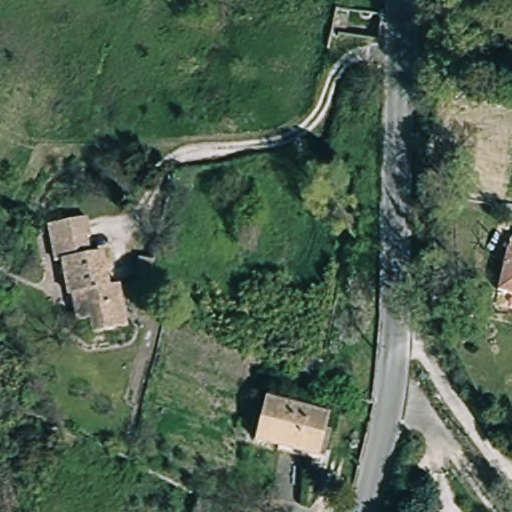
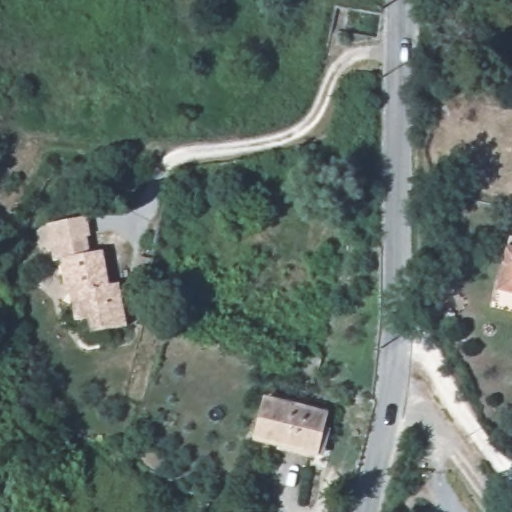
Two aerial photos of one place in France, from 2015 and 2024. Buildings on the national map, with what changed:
unchanged [(86,216),(92,252),(63,253),(63,269),(52,269),(47,224),(86,216)]
unchanged [(512,289),(495,286),(500,247),(512,248),(512,289)]
unchanged [(92,252),(103,252),(104,286),(114,285),(117,329),(80,329),(78,287),(63,287),(63,269),(63,253),(92,252)]
unchanged [(299,366),(302,350),(320,357),(316,372),(299,366)]
unchanged [(270,401),(327,415),(316,455),(259,440),(270,401)]
unchanged [(207,508),(191,503),(197,487),(211,495),(207,508)]

